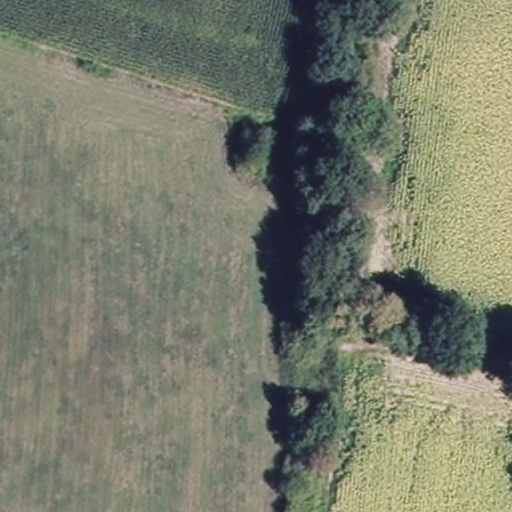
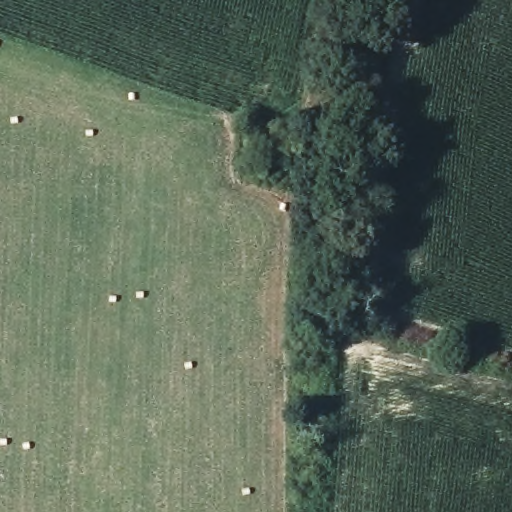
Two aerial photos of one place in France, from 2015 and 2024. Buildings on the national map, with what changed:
[]

